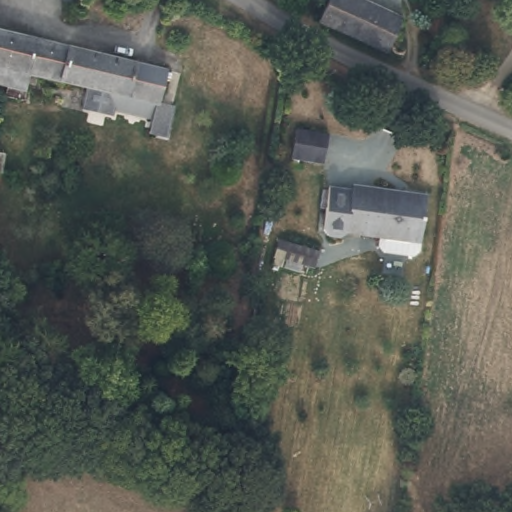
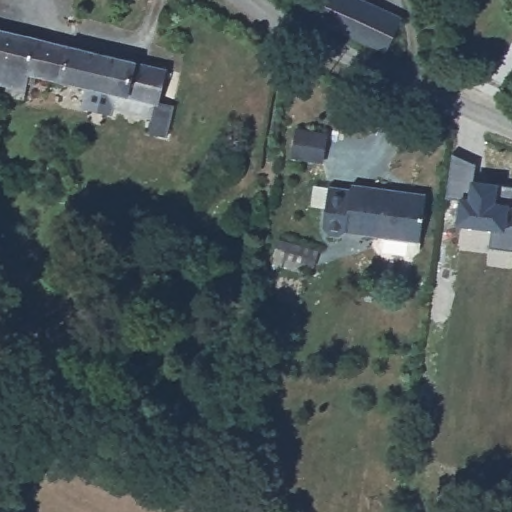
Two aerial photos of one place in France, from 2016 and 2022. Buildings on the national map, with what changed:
unchanged [(362,0),(399,15),(385,50),(316,20),(327,0),(362,0)]
unchanged [(73,46),(65,81),(31,75),(29,82),(22,80),(17,99),(0,93),(0,89),(1,85),(0,85),(0,29),(29,36),(73,46)]
unchanged [(160,134),(143,130),(146,115),(108,106),(106,111),(77,105),(82,85),(65,81),(73,46),(161,62),(154,100),(167,101),(160,134)]
unchanged [(293,152),(295,125),(326,130),(323,156),(293,152)]
new [(476,164),(475,171),(475,180),(499,184),(499,185),(512,187),(512,250),(490,247),(492,230),(456,225),(458,199),(446,197),(450,154),(476,164)]
unchanged [(408,246),(378,242),(374,236),(375,227),(340,223),(336,227),(321,227),(318,221),(323,178),(346,180),(346,176),(420,184),(414,242),(408,246)]

